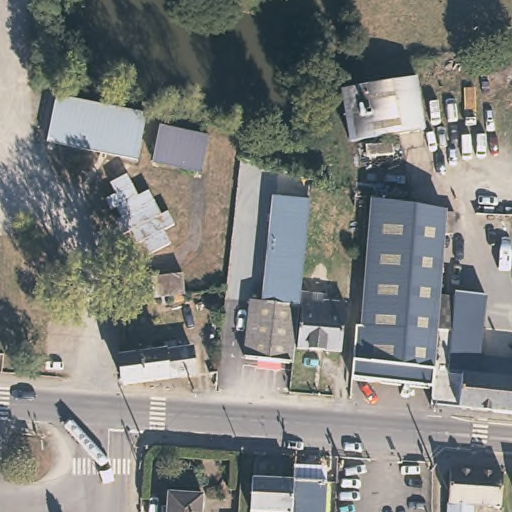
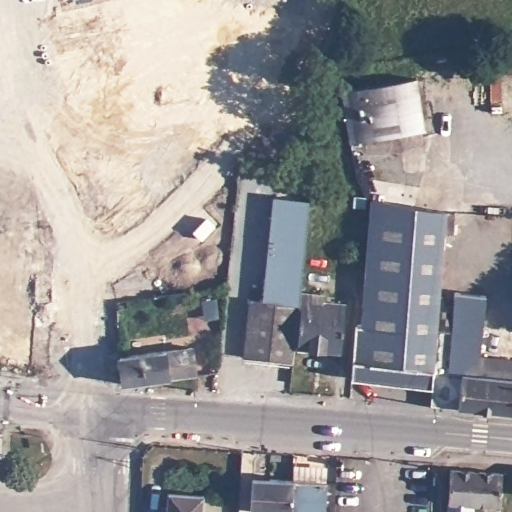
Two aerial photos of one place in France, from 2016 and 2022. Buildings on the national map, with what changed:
unchanged [(413,76),(421,129),(352,141),(347,142),(340,90),(347,89),(413,76)]
demolished [(56,100),(146,118),(137,163),(46,145),(56,100)]
demolished [(203,172),(153,163),(160,128),(209,137),(203,172)]
unchanged [(121,237),(106,199),(117,194),(110,183),(129,172),(136,191),(147,185),(176,241),(145,254),(132,230),(121,237)]
unchanged [(291,363),(242,358),(249,301),(262,302),(274,197),(309,201),(308,209),(298,295),(297,310),(291,363)]
unchanged [(378,380),(350,378),(351,365),(355,325),(361,326),(371,202),(442,213),(430,371),(429,389),(378,380)]
unchanged [(181,280),(184,301),(152,304),(150,283),(181,280)]
unchanged [(320,297),(320,303),(343,306),(339,353),(296,348),(300,310),(297,310),(298,295),(320,297)]
unchanged [(453,298),(483,306),(482,320),(478,359),(476,375),(460,376),(446,375),(450,332),(453,298)]
unchanged [(431,377),(435,331),(450,332),(446,375),(460,376),(458,410),(430,407),(431,377)]
unchanged [(189,347),(194,375),(122,386),(118,359),(189,347)]
unchanged [(476,375),(478,359),(512,362),(512,414),(486,412),(458,410),(460,376),(476,375)]
unchanged [(506,470),(504,504),(485,502),(485,512),(475,512),(450,512),(450,502),(452,466),(506,470)]
unchanged [(290,480),(324,482),(323,512),(250,512),(251,485),(251,480),(268,481),(290,483),(290,480)]
unchanged [(201,495),(200,512),(165,512),(166,493),(201,495)]

